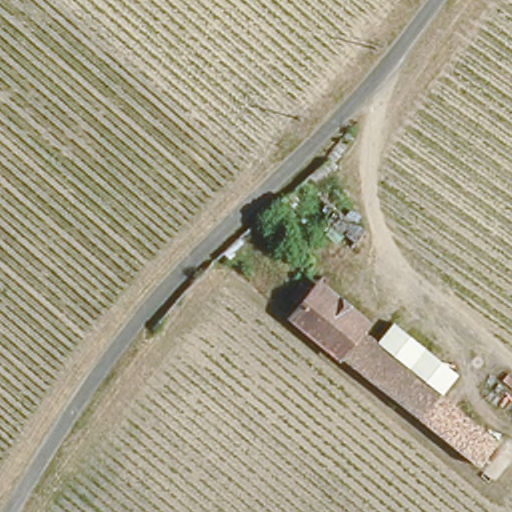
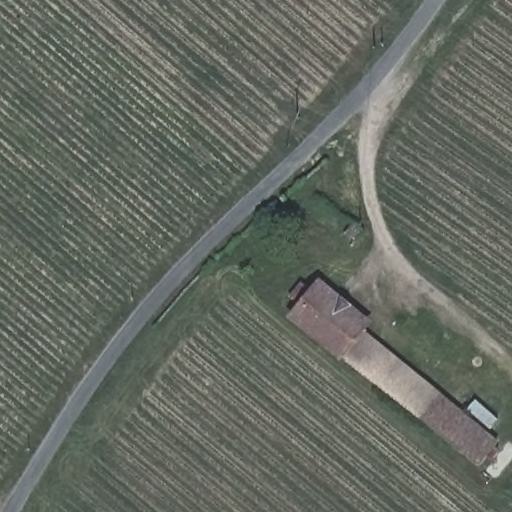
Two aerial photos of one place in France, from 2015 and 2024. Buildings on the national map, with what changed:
unchanged [(367,224),(357,238),(344,228),(354,215),(367,224)]
unchanged [(442,387),(499,432),(481,459),(289,310),(294,303),(283,293),(300,274),(311,283),(320,272),(374,315),(365,326),(375,334),(442,387)]
unchanged [(457,368),(442,387),(375,334),(391,312),(457,368)]

